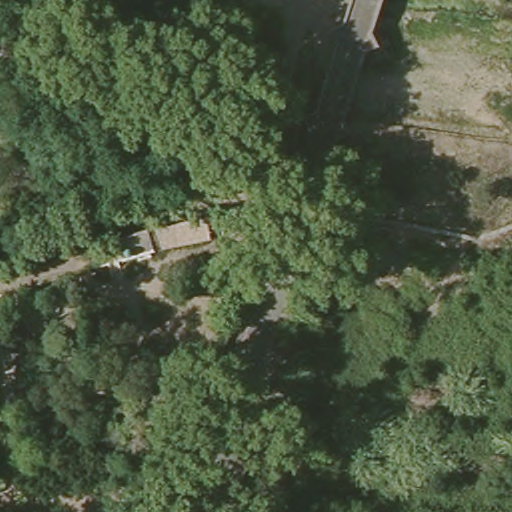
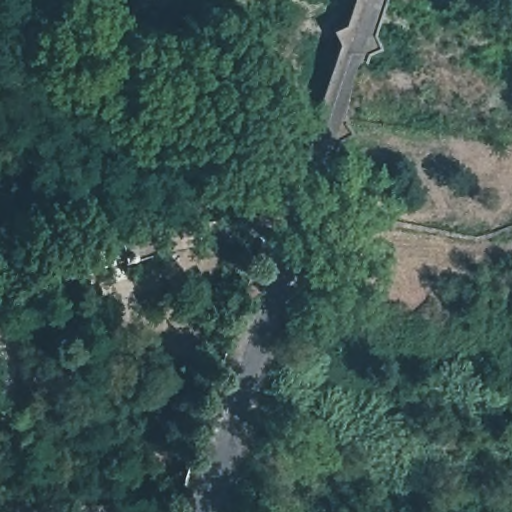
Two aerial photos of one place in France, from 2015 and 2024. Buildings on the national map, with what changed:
unchanged [(115,242),(149,232),(156,250),(120,261),(115,242)]

